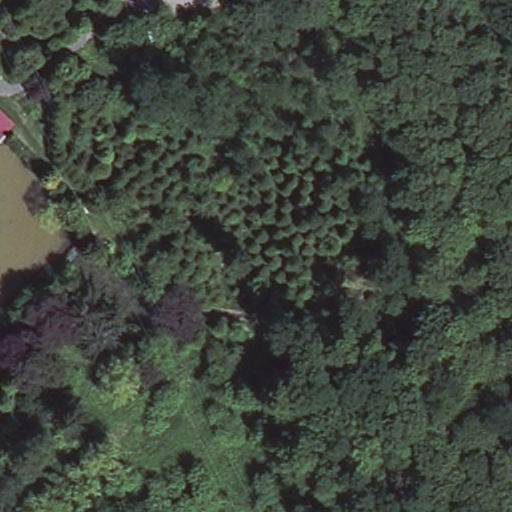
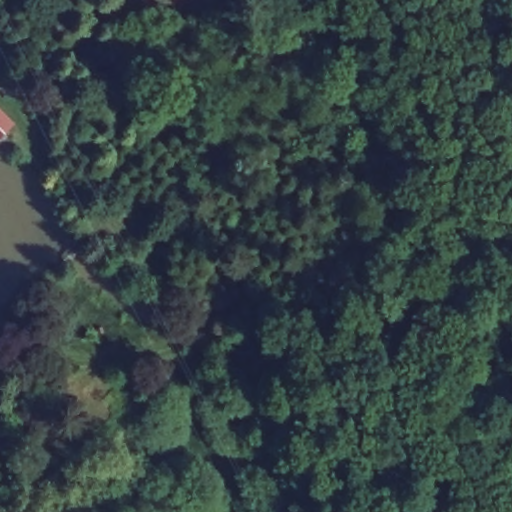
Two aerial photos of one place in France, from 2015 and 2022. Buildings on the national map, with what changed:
unchanged [(0,135),(0,119),(10,128),(2,137),(0,135)]

